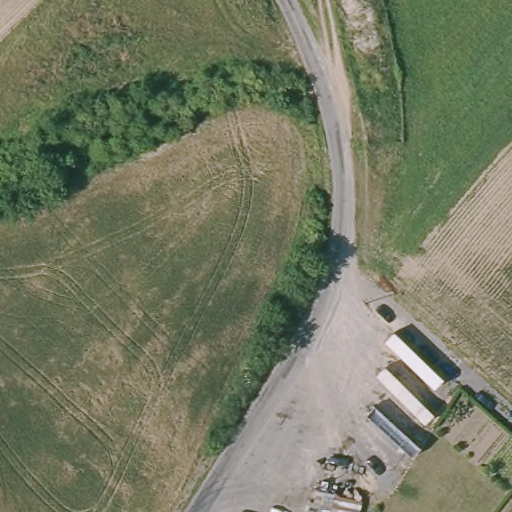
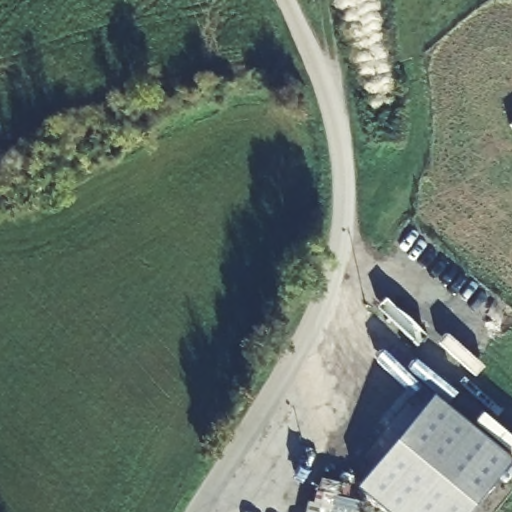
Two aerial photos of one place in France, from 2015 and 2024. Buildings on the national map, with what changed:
new [(432,392),(509,462),(466,512),(386,512),(357,485),(432,392)]
unchanged [(305,501),(311,502),(313,492),(349,498),(345,509),(341,508),(340,512),(303,512),(305,501)]
unchanged [(362,512),(340,512),(341,508),(345,509),(349,498),(365,502),(362,512)]

